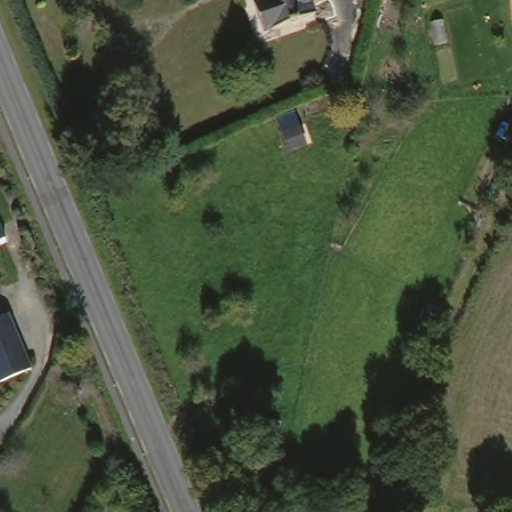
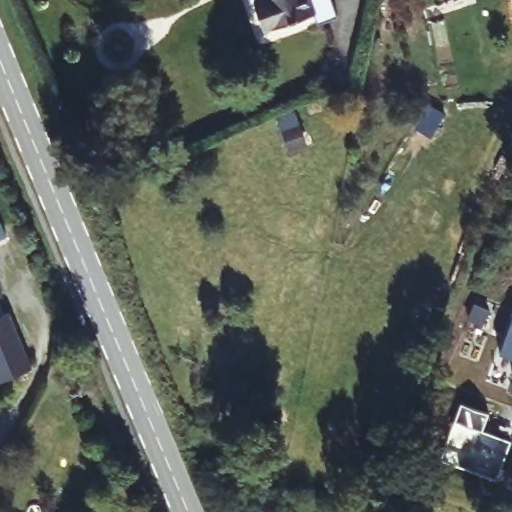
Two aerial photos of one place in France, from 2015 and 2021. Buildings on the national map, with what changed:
unchanged [(318,0),(320,7),(266,26),(257,0),(258,0),(318,0)]
unchanged [(5,235),(0,237),(0,223),(5,235)]
unchanged [(3,313),(8,311),(31,367),(0,380),(0,305),(3,313)]
new [(512,320),(512,360),(500,356),(512,320)]
new [(461,406),(488,416),(483,433),(512,443),(498,482),(441,463),(461,406)]

